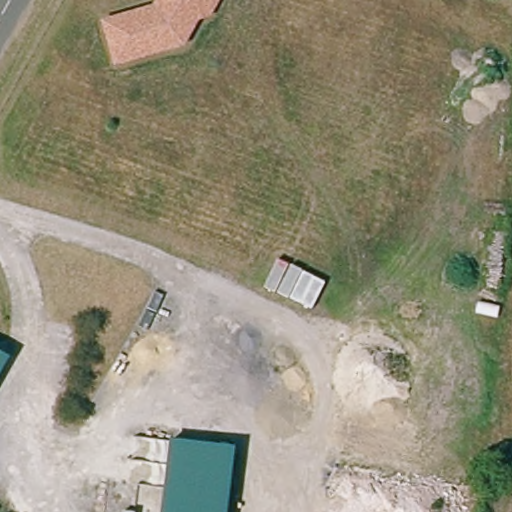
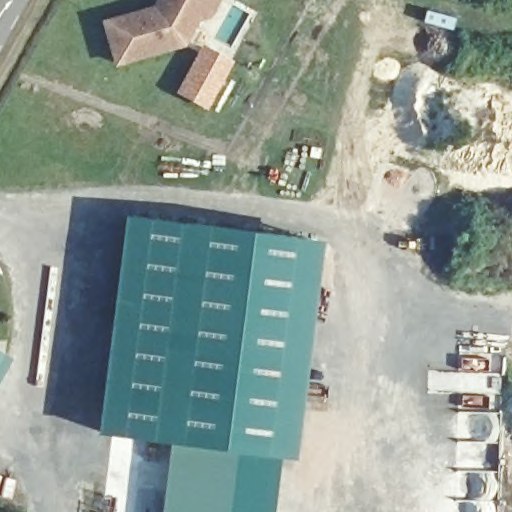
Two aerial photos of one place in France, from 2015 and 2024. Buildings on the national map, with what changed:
unchanged [(156,0),(220,0),(213,14),(200,19),(185,45),(115,65),(101,19),(154,4),(156,0)]
new [(183,95),(178,92),(203,48),(229,63),(220,79),(205,106),(183,95)]
new [(123,214),(321,240),(292,458),(276,456),(270,512),(259,512),(266,453),(235,447),(170,438),(169,441),(96,432),(123,214)]
unchanged [(6,358),(0,369),(0,354),(6,358)]
unchanged [(235,447),(228,512),(161,512),(170,438),(235,447)]
new [(235,447),(266,453),(259,512),(228,512),(235,447)]

